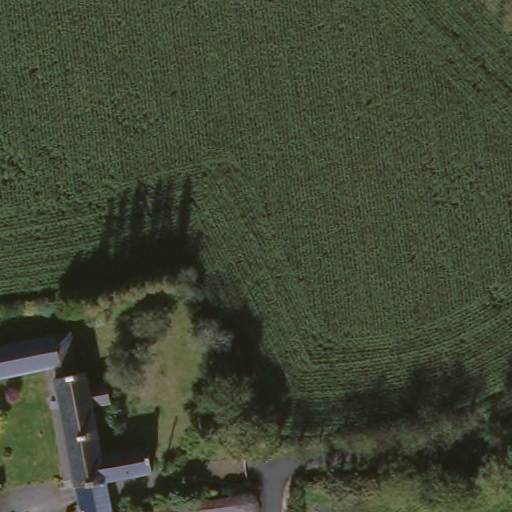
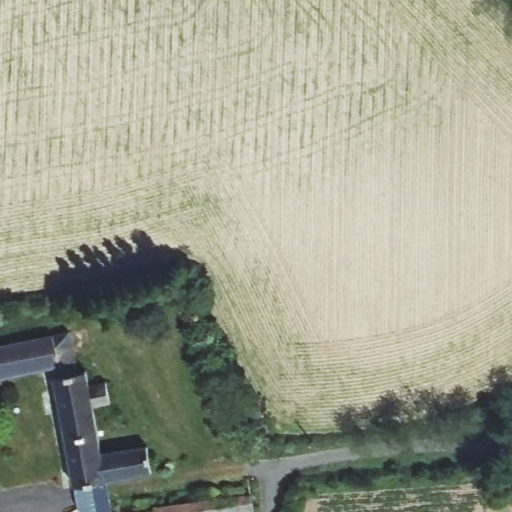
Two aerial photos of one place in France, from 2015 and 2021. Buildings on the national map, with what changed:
unchanged [(53,351),(74,349),(78,369),(95,366),(97,380),(79,384),(78,372),(47,377),(44,369),(0,375),(0,343),(50,334),(53,351)]
unchanged [(78,372),(79,384),(98,380),(101,403),(86,408),(92,453),(139,445),(144,471),(66,485),(48,380),(47,377),(78,372)]
unchanged [(146,505),(244,491),(248,512),(141,512),(147,511),(146,505)]
unchanged [(74,512),(65,512),(71,509),(74,512)]

